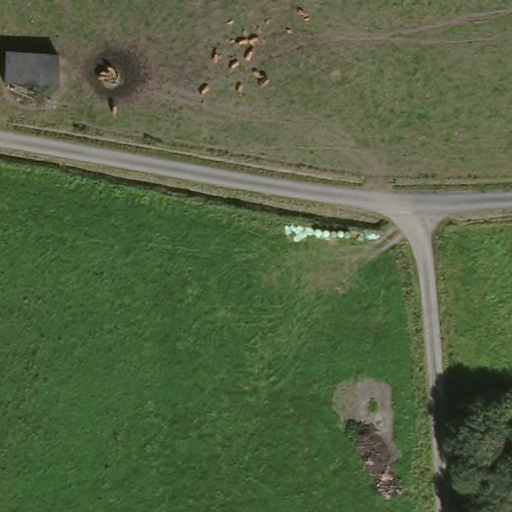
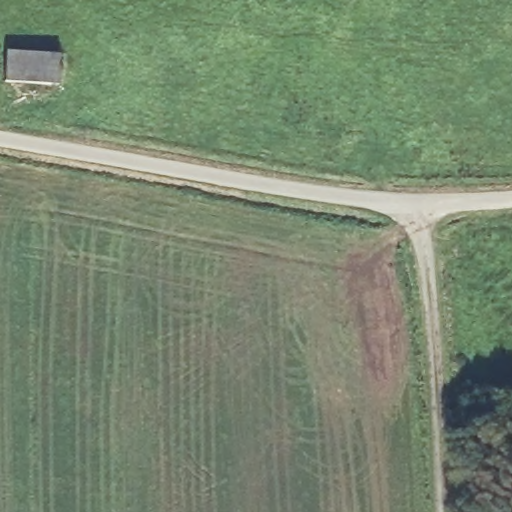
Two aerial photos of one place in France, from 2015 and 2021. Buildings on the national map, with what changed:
unchanged [(61,85),(6,82),(8,53),(61,55),(61,85)]

